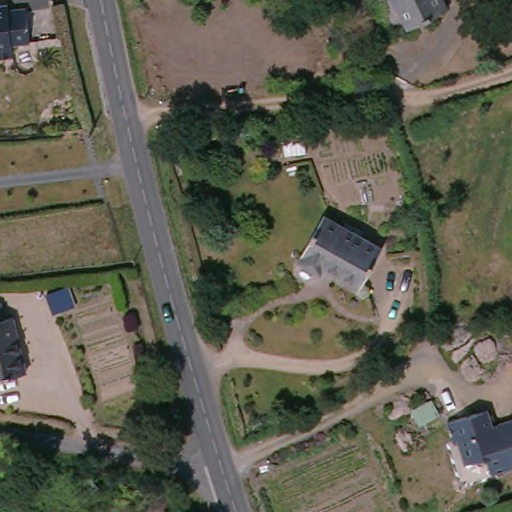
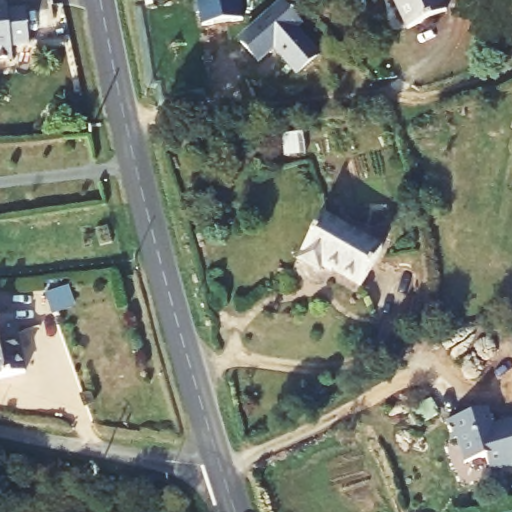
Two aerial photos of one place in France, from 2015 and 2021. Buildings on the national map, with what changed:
new [(204,25),(200,0),(241,0),(244,17),(204,25)]
unchanged [(406,30),(392,0),(441,0),(446,11),(406,30)]
new [(279,1),(296,19),(291,25),(314,50),(296,66),(273,42),(256,57),(239,39),(279,1)]
unchanged [(17,11),(36,11),(38,47),(21,48),(20,59),(0,60),(0,4),(17,4),(17,11)]
new [(303,131),(306,151),(286,156),(281,135),(303,131)]
unchanged [(298,258),(328,212),(386,246),(379,258),(363,285),(326,264),(323,271),(309,264),(298,258)]
unchanged [(0,377),(0,301),(9,299),(13,314),(23,312),(39,367),(0,377)]
unchanged [(484,410),(491,426),(511,418),(512,421),(512,468),(494,475),(487,458),(466,466),(457,443),(453,444),(445,426),(484,410)]

